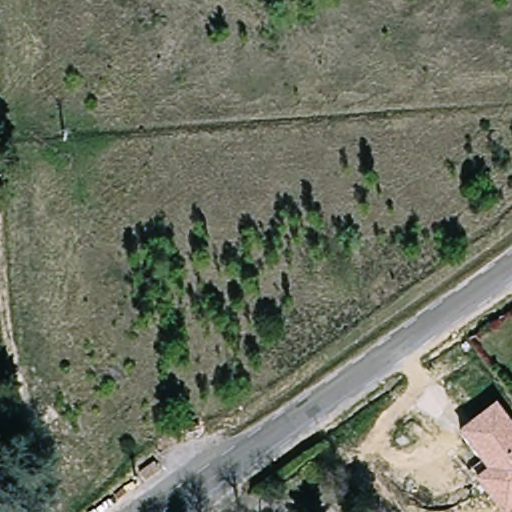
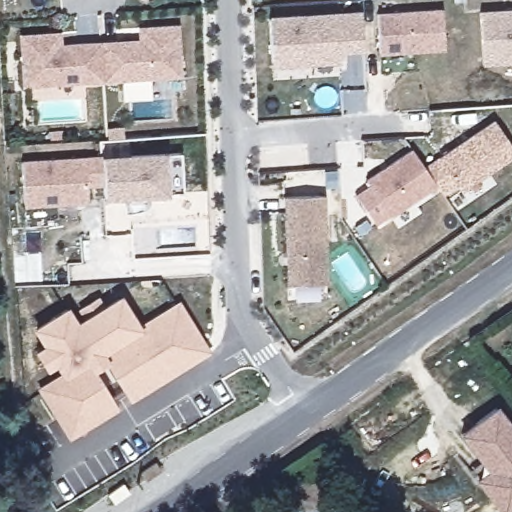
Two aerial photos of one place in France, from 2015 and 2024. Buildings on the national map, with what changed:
new [(361,48),(338,49),(339,62),(271,66),(268,19),(335,15),(359,14),(361,48)]
new [(436,21),(439,61),(374,66),(371,26),(436,21)]
new [(478,76),(474,24),(512,21),(512,74),(478,76)]
new [(133,43),(142,42),(172,41),(176,92),(99,97),(96,58),(134,56),(133,43)]
new [(55,49),(56,61),(96,58),(99,97),(19,102),(15,51),(46,49),(55,49)]
new [(490,133),(511,165),(456,203),(453,197),(438,207),(432,197),(420,181),(490,133)]
new [(180,152),(184,195),(169,196),(104,200),(102,156),(166,152),(180,152)]
new [(365,198),(362,192),(407,162),(420,181),(432,197),(386,229),(385,227),(371,237),(351,207),(365,198)]
new [(97,172),(99,200),(83,201),(84,218),(20,222),(17,177),(97,172)]
new [(321,210),(327,298),(288,300),(281,212),(321,210)]
new [(211,353),(131,403),(107,363),(95,371),(119,411),(70,442),(37,389),(58,372),(55,367),(48,372),(34,352),(43,347),(32,330),(67,307),(77,322),(85,318),(78,309),(98,296),(104,305),(120,294),(139,323),(179,301),(211,353)]
unchanged [(474,469),(467,458),(479,450),(467,432),(502,407),(512,421),(512,511),(511,512),(504,512),(474,469)]

